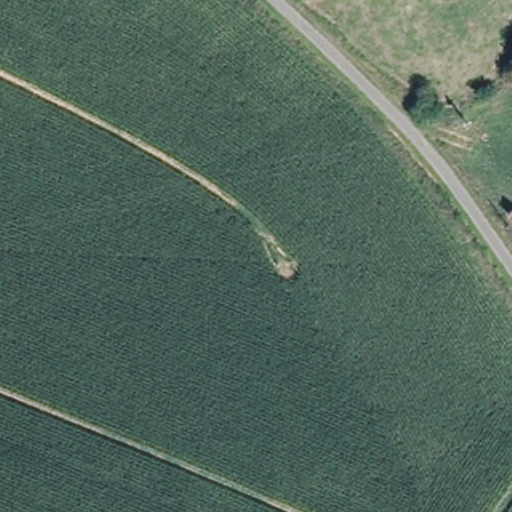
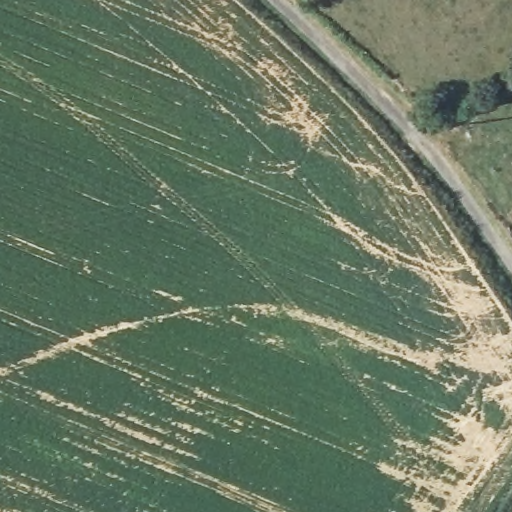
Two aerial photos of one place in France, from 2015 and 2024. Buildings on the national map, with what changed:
[]

